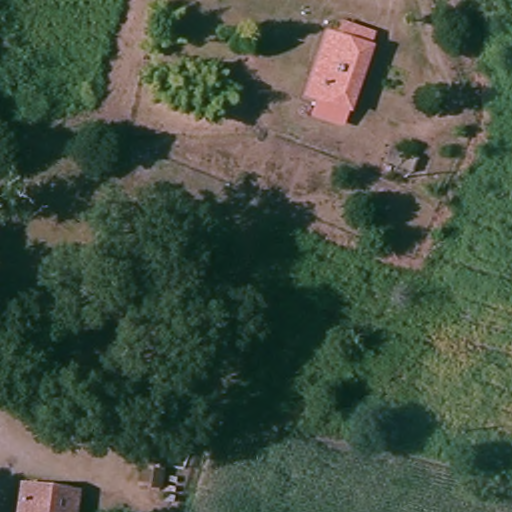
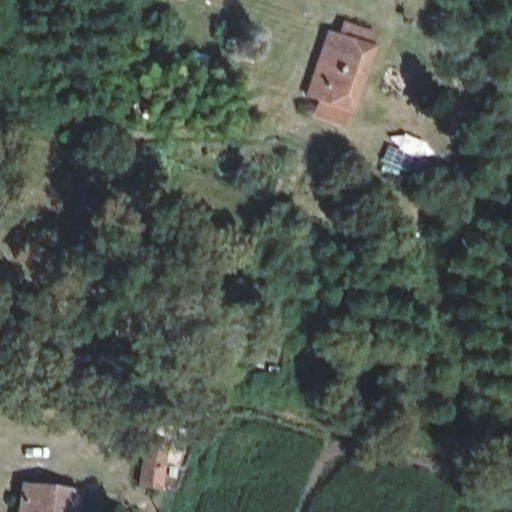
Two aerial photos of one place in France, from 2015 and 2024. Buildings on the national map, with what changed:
unchanged [(362,47),(349,109),(309,100),(322,38),(362,47)]
unchanged [(102,353),(33,346),(35,307),(105,313),(102,353)]
unchanged [(228,345),(269,362),(263,383),(218,367),(228,345)]
unchanged [(273,443),(220,433),(226,409),(280,418),(273,443)]
unchanged [(163,444),(161,474),(139,472),(139,443),(163,444)]
unchanged [(16,489),(74,494),(73,512),(15,512),(16,489)]

